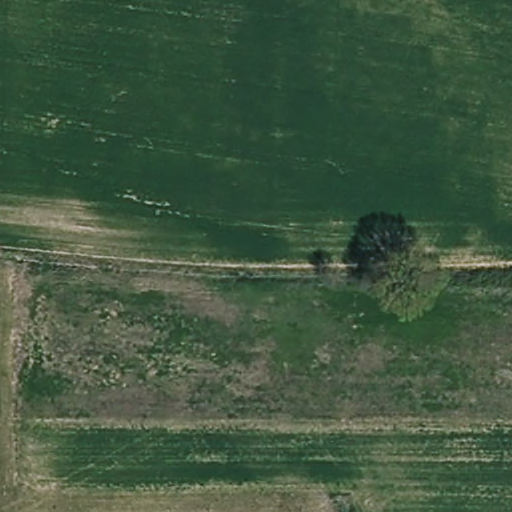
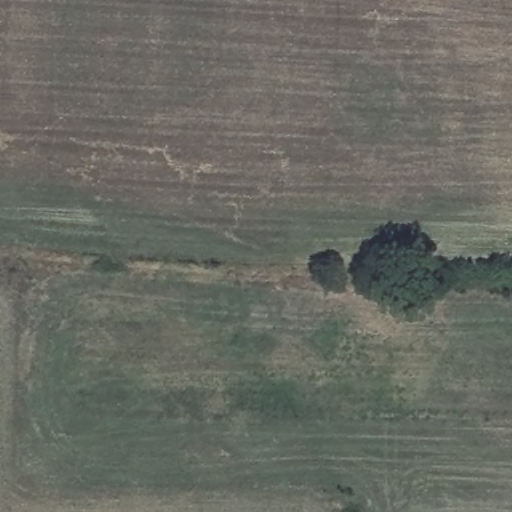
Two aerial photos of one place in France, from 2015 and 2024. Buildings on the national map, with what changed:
[]

